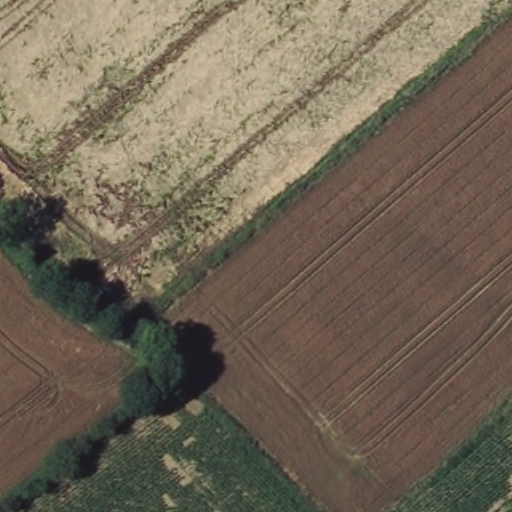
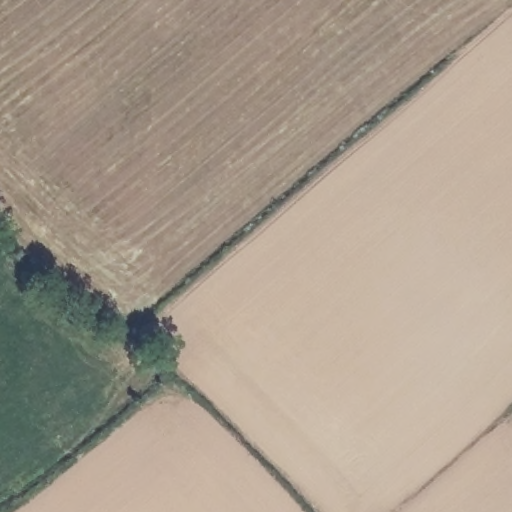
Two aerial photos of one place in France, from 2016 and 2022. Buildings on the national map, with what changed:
[]

